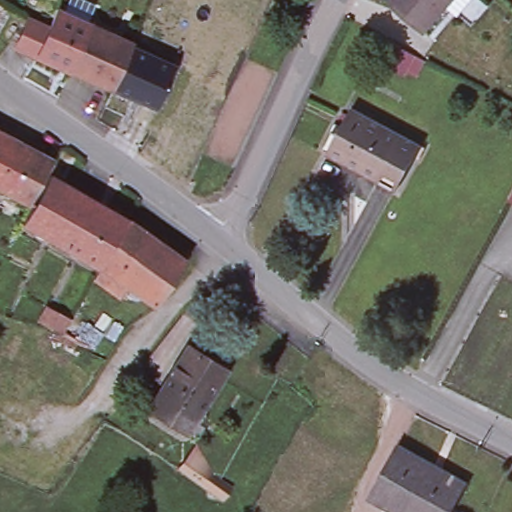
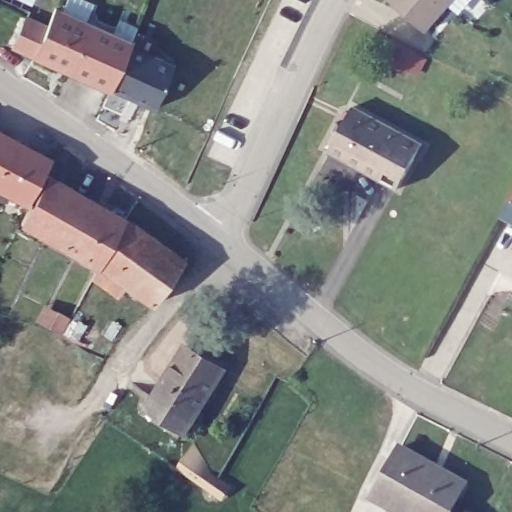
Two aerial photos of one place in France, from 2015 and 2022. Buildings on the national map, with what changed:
unchanged [(395,0),(453,0),(432,23),(428,28),(411,14),(395,0)]
unchanged [(90,23),(68,68),(37,54),(17,44),(30,16),(50,25),(57,8),(90,23)]
unchanged [(107,18),(135,32),(131,41),(130,44),(110,87),(68,68),(90,23),(102,29),(107,18)]
unchanged [(417,52),(409,69),(385,57),(394,40),(417,52)]
unchanged [(156,108),(142,101),(112,88),(110,87),(130,44),(161,58),(175,64),(156,108)]
unchanged [(424,143),(400,188),(330,151),(355,105),(424,143)]
unchanged [(32,204),(0,187),(0,129),(55,158),(32,204)]
unchanged [(26,222),(52,174),(130,219),(188,259),(157,305),(130,286),(123,296),(97,278),(102,267),(26,222)]
unchanged [(501,217),(512,200),(512,223),(501,217)]
unchanged [(70,318),(60,334),(49,326),(57,311),(70,318)]
unchanged [(225,370),(186,432),(165,419),(169,412),(150,400),(184,344),(225,370)]
unchanged [(194,445),(209,470),(228,486),(219,498),(177,464),(194,445)]
unchanged [(373,494),(400,446),(435,466),(463,483),(459,491),(447,512),(405,512),(373,494)]

